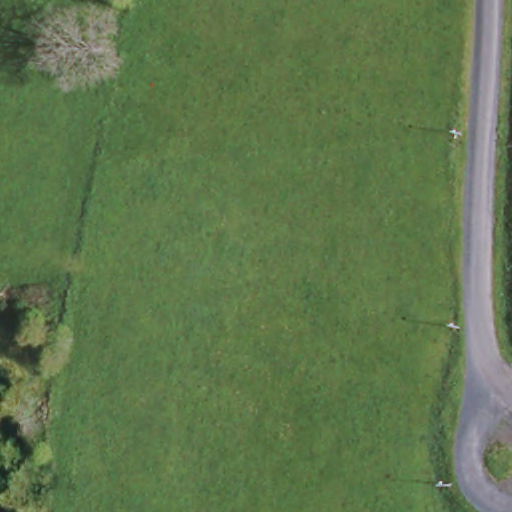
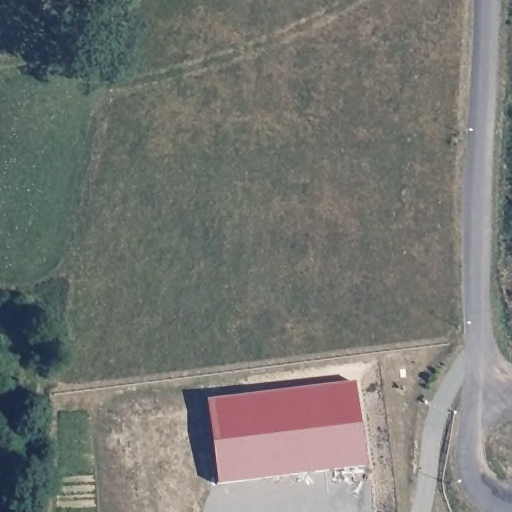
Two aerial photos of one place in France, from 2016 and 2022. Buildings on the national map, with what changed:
new [(216,484),(206,403),(355,384),(365,466),(216,484)]

